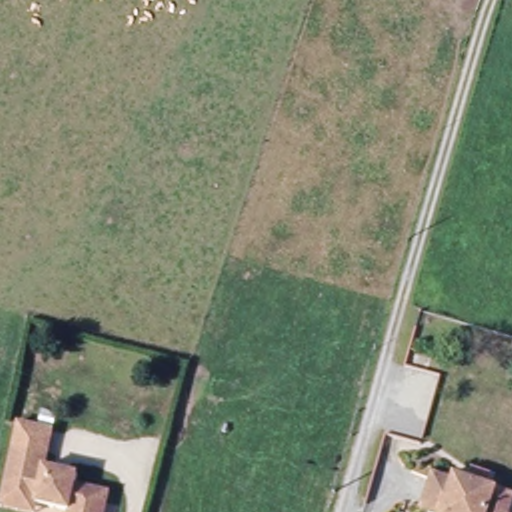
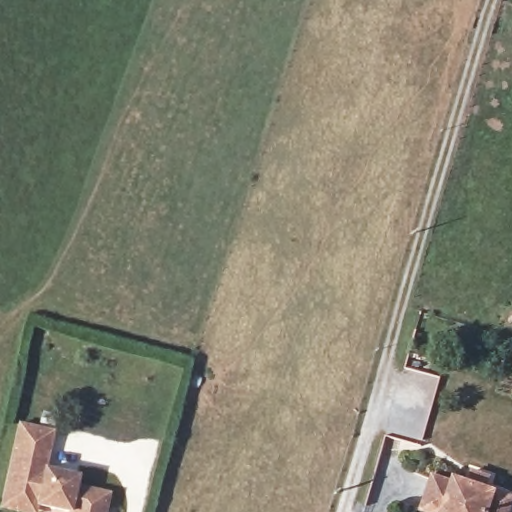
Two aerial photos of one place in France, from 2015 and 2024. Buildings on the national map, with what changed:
unchanged [(52,512),(18,512),(5,509),(7,500),(20,425),(55,433),(49,470),(80,477),(80,489),(106,495),(102,512),(69,512),(53,509),(52,512)]
unchanged [(452,487),(453,483),(470,490),(474,475),(494,480),(490,495),(512,502),(512,506),(510,512),(425,512),(434,483),(452,487)]

